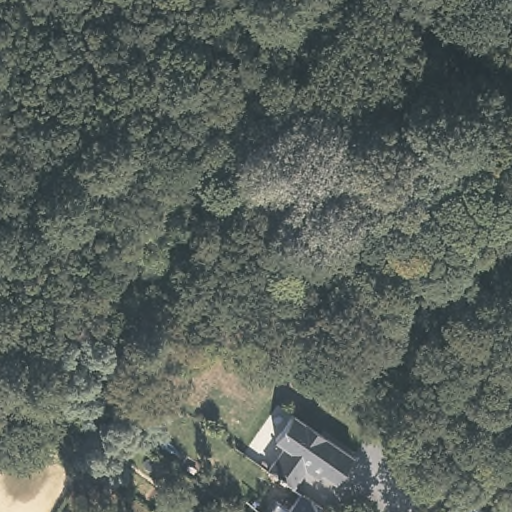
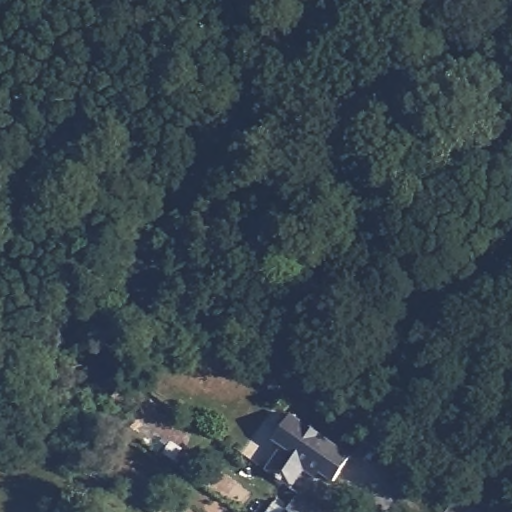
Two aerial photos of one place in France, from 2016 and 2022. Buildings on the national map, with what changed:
unchanged [(351,457),(335,482),(309,464),(292,488),(267,470),(285,446),(276,440),(292,416),(351,457)]
unchanged [(313,502),(323,510),(321,512),(268,512),(275,501),(289,511),(300,493),(313,502)]
unchanged [(449,512),(460,495),(483,512),(449,512)]

